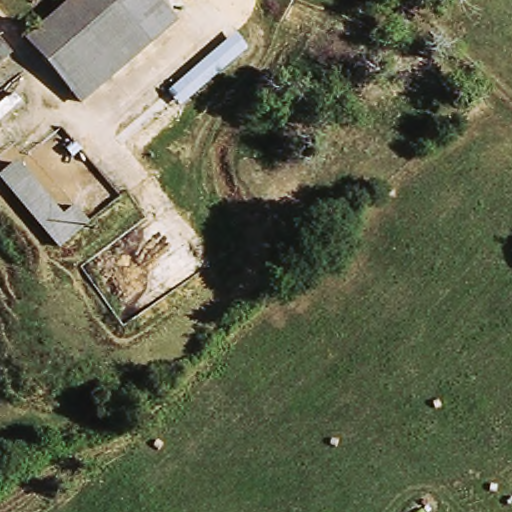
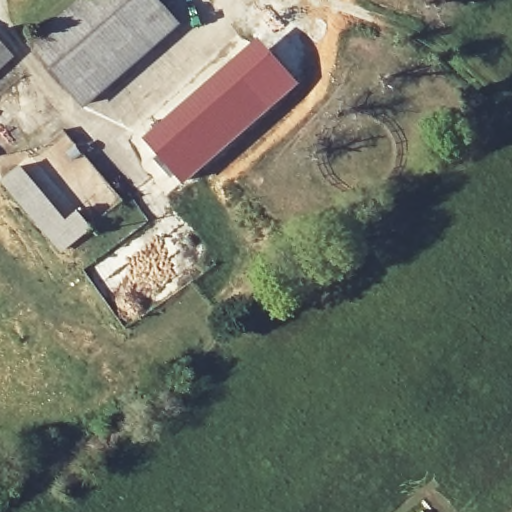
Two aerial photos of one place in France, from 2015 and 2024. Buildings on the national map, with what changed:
unchanged [(79,105),(25,36),(70,0),(142,0),(169,33),(79,105)]
demolished [(126,150),(114,136),(234,33),(246,50),(126,150)]
new [(256,35),(299,82),(181,184),(139,136),(256,35)]
unchanged [(10,49),(0,58),(0,37),(10,49)]
unchanged [(0,179),(23,164),(67,219),(79,208),(97,229),(62,254),(0,179)]

